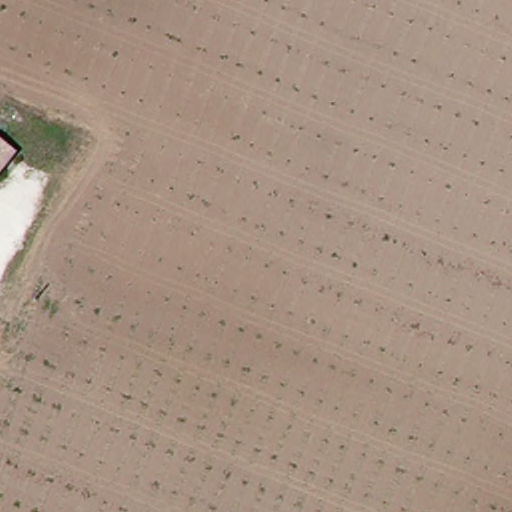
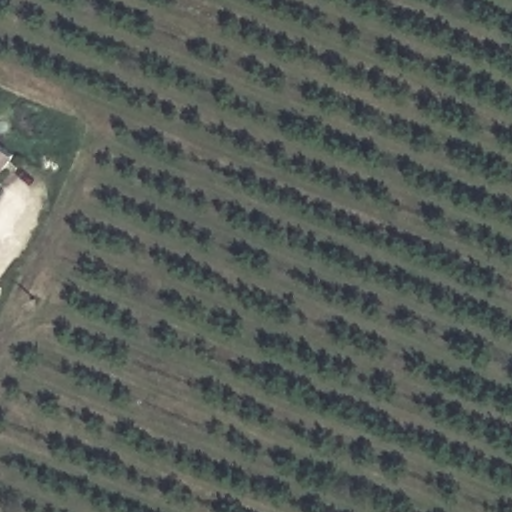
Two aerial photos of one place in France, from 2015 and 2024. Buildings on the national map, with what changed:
unchanged [(19,159),(0,182),(0,145),(19,159)]

